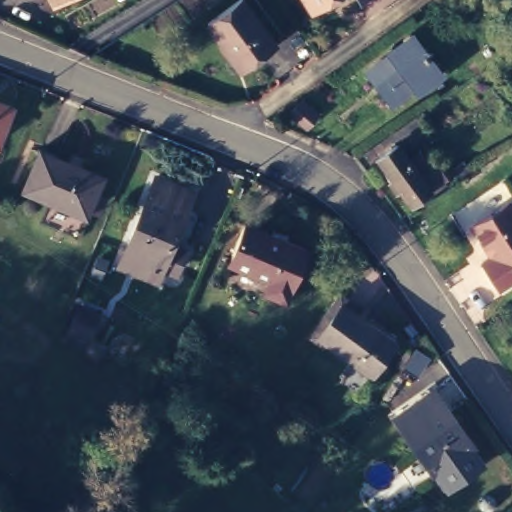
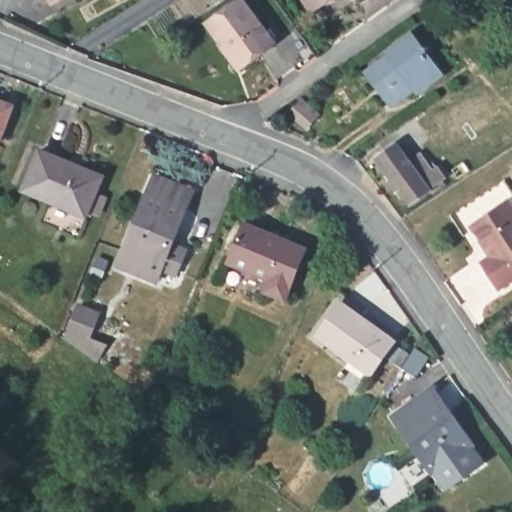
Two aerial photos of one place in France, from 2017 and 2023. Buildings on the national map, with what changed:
unchanged [(239,0),(244,0),(275,42),(241,67),(208,22),(239,0)]
unchanged [(303,0),(331,0),(313,10),(310,12),(303,0)]
unchanged [(360,3),(358,0),(365,0),(360,3)]
unchanged [(407,31),(435,68),(415,84),(412,81),(388,100),(362,66),(407,31)]
unchanged [(11,100),(0,131),(0,96),(11,100)]
unchanged [(317,116),(307,126),(292,112),(300,102),(317,116)]
unchanged [(397,140),(409,157),(421,148),(430,161),(434,158),(437,162),(445,172),(428,183),(430,185),(412,198),(400,183),(397,186),(390,176),(393,174),(378,153),(397,140)]
unchanged [(98,208),(88,204),(85,210),(23,185),(39,146),(102,172),(95,189),(105,193),(98,208)]
unchanged [(452,169),(465,162),(470,170),(458,178),(452,169)]
unchanged [(118,256),(125,241),(155,166),(185,178),(192,181),(185,197),(170,235),(185,241),(176,262),(162,256),(155,271),(118,256)]
unchanged [(512,282),(500,289),(480,259),(488,253),(470,225),(509,197),(512,202),(512,282)]
unchanged [(250,219),(312,244),(290,295),(270,286),(275,274),(233,258),(250,219)]
unchanged [(380,320),(402,336),(397,344),(376,374),(331,341),(327,346),(315,337),(345,295),(350,298),(346,303),(377,325),(380,320)]
unchanged [(79,306),(98,313),(87,341),(68,334),(79,306)]
unchanged [(395,417),(433,391),(470,444),(433,470),(395,417)]
unchanged [(484,463),(446,491),(433,471),(470,444),(484,463)]
unchanged [(20,466),(5,483),(0,479),(0,449),(20,466)]

